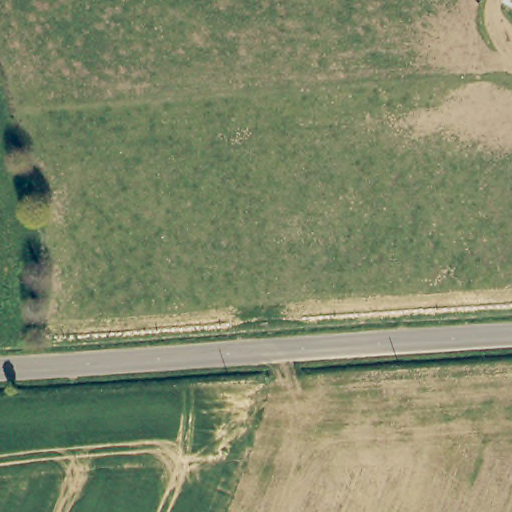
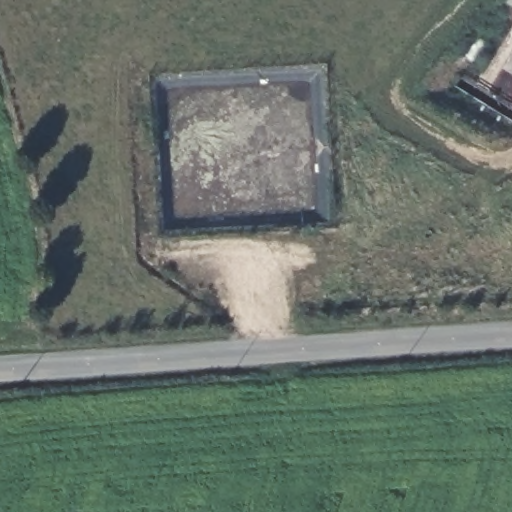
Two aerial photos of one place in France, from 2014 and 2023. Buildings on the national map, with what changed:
unchanged [(509,1),(510,0),(512,0),(512,3),(509,1)]

